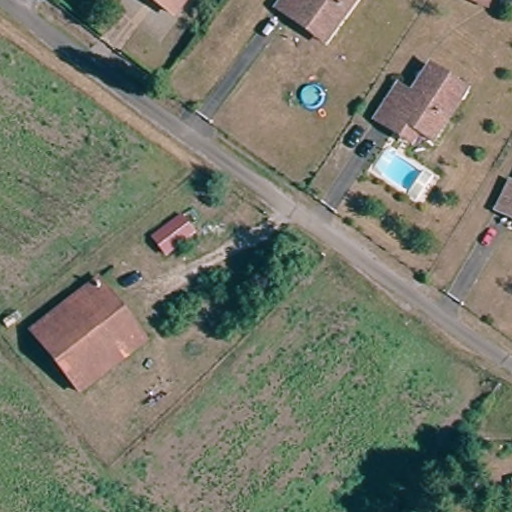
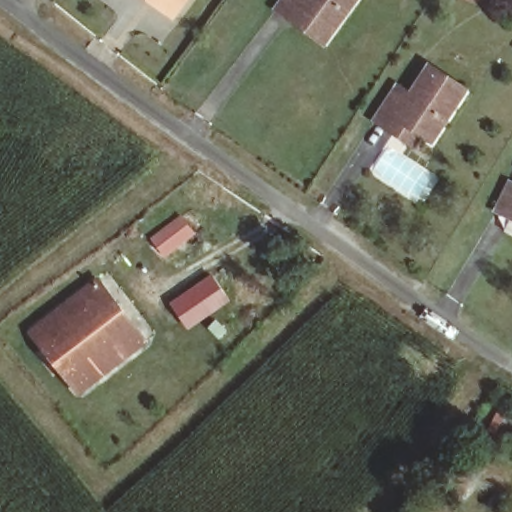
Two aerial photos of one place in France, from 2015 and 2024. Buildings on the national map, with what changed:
unchanged [(173,16),(154,3),(156,1),(154,0),(183,0),(173,16)]
unchanged [(285,15),(271,4),(274,0),(347,0),(326,28),(318,39),(285,15)]
unchanged [(487,7),(471,0),(490,0),(487,7)]
unchanged [(385,126),(370,116),(393,81),(406,89),(425,61),(461,84),(427,137),(413,127),(405,140),(385,126)]
unchanged [(506,216),(490,207),(504,180),(512,184),(512,215),(507,212),(506,216)]
unchanged [(167,256),(153,239),(181,217),(195,235),(167,256)]
new [(191,331),(173,306),(215,278),(233,303),(191,331)]
unchanged [(80,393),(31,332),(99,281),(146,342),(80,393)]

